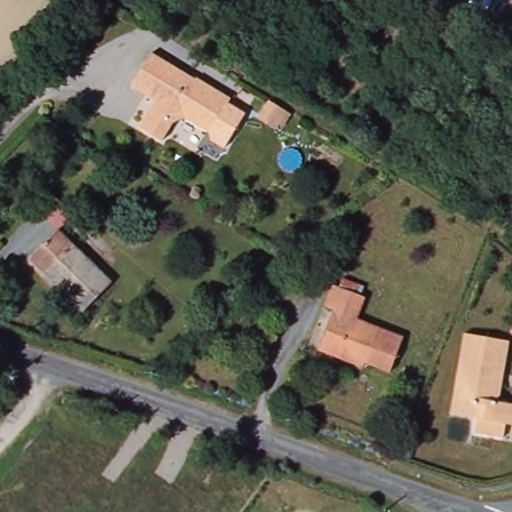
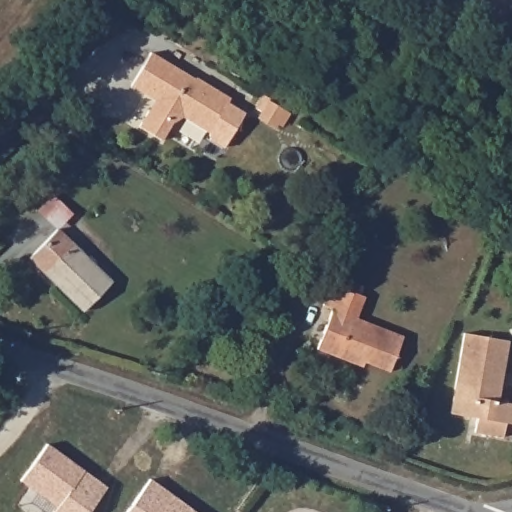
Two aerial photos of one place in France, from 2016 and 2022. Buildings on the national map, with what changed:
unchanged [(192,81),(195,81),(228,102),(209,135),(184,119),(176,121),(165,137),(142,124),(159,98),(135,83),(151,57),(192,81)]
unchanged [(111,283),(83,311),(30,260),(59,231),(111,283)]
unchanged [(364,298),(356,318),(403,337),(389,371),(357,359),(355,365),(318,349),(334,310),(323,306),(332,284),(364,298)]
unchanged [(509,342),(497,402),(512,406),(512,426),(503,424),(501,438),(472,433),(476,418),(449,413),(462,352),(466,333),(483,337),(509,342)]
new [(107,487),(90,512),(54,512),(57,508),(20,480),(48,444),(107,487)]
new [(197,512),(128,512),(151,478),(197,512)]

